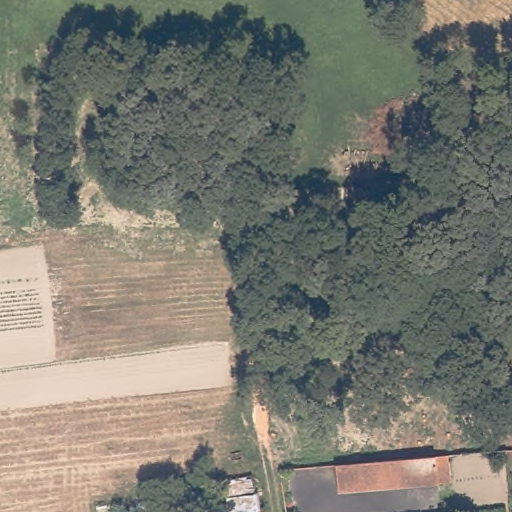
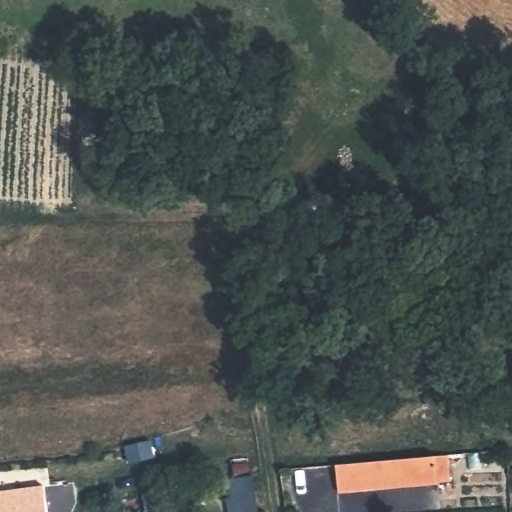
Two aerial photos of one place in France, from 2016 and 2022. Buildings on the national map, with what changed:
unchanged [(437,457),(450,456),(451,485),(439,485),(381,490),(380,460),(437,457)]
unchanged [(337,492),(335,463),(380,460),(381,490),(337,492)]
unchanged [(225,480),(256,473),(265,509),(270,508),(270,512),(254,512),(230,512),(225,480)]
new [(42,486),(46,512),(0,512),(0,492),(42,486)]

